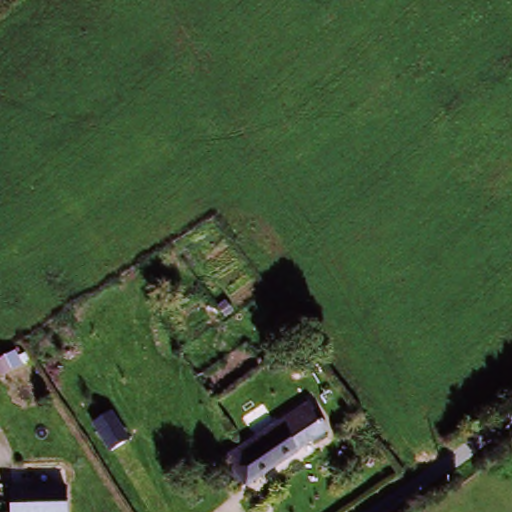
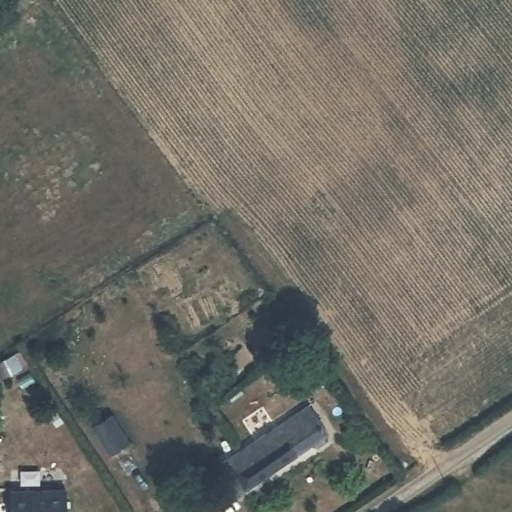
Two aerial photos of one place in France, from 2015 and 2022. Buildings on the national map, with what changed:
unchanged [(2,370),(10,382),(0,390),(0,372),(2,370)]
unchanged [(240,495),(220,467),(249,449),(307,407),(330,434),(244,493),(240,495)]
unchanged [(115,456),(102,435),(97,429),(114,417),(119,423),(133,444),(115,456)]
unchanged [(70,485),(72,512),(17,512),(15,489),(70,485)]

